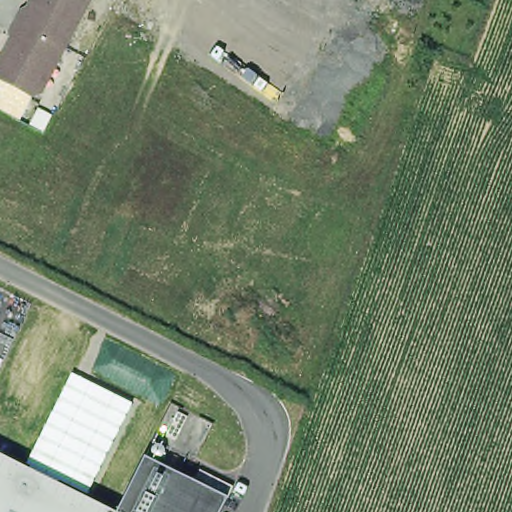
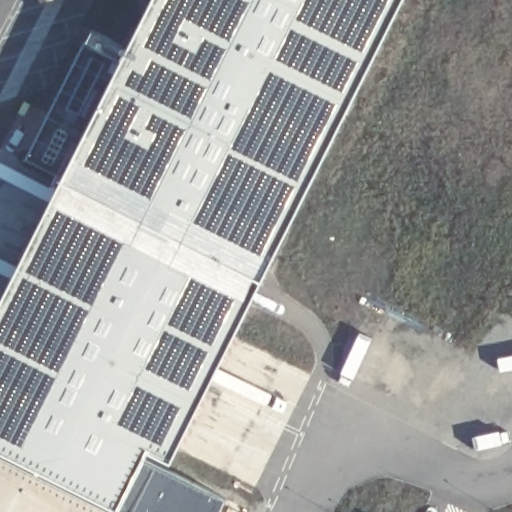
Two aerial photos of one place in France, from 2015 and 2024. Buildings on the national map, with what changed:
unchanged [(42,95),(0,73),(0,63),(14,35),(11,23),(20,5),(32,1),(32,0),(89,0),(42,95)]
new [(52,182),(142,0),(394,0),(252,280),(52,182)]
new [(0,288),(52,182),(252,280),(162,458),(144,450),(109,512),(0,459),(0,288)]
new [(512,304),(512,348),(485,390),(461,374),(509,301),(512,304)]
unchanged [(162,458),(227,495),(219,512),(109,512),(144,450),(162,458)]
unchanged [(0,512),(0,459),(109,512),(0,512)]

